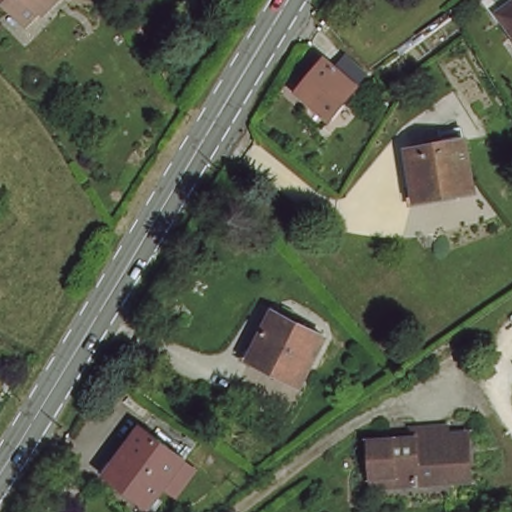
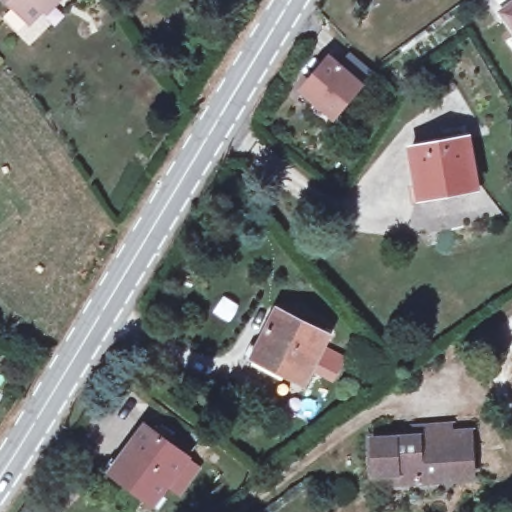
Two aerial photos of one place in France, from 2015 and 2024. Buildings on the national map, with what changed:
unchanged [(35,0),(20,13),(7,0),(35,0)]
unchanged [(504,26),(491,7),(501,0),(512,0),(512,28),(509,24),(504,26)]
unchanged [(298,86),(330,55),(356,81),(325,115),(298,86)]
unchanged [(474,184),(416,195),(409,148),(468,138),(474,184)]
unchanged [(288,313),(329,334),(306,380),(255,351),(279,308),(288,313)]
unchanged [(105,469),(142,422),(186,457),(148,507),(105,469)]
unchanged [(421,479),(397,481),(398,474),(377,476),(375,438),(419,434),(419,425),(450,423),(451,432),(469,429),(472,477),(453,477),(452,472),(421,474),(421,479)]

